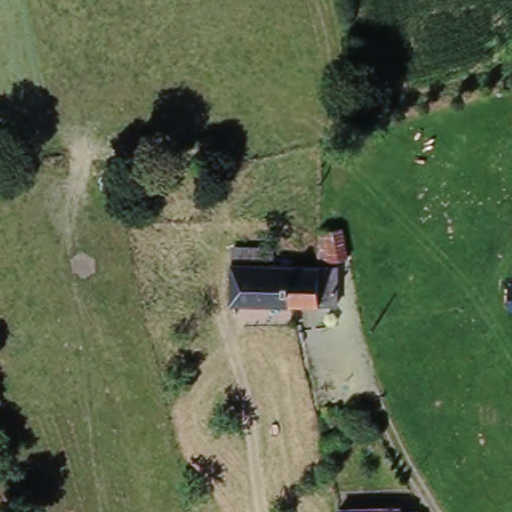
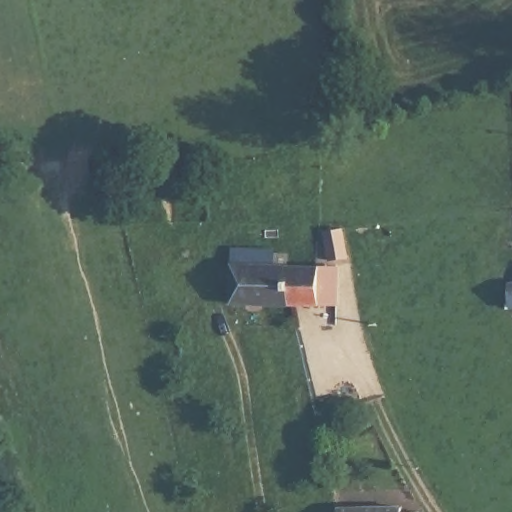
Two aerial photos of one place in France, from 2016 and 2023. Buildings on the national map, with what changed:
unchanged [(293,304),(233,302),(234,264),(294,266),(293,304)]
unchanged [(325,268),(343,269),(343,308),(324,307),(322,305),(293,304),(294,266),(325,268)]
unchanged [(401,510),(401,512),(349,512),(401,510)]

